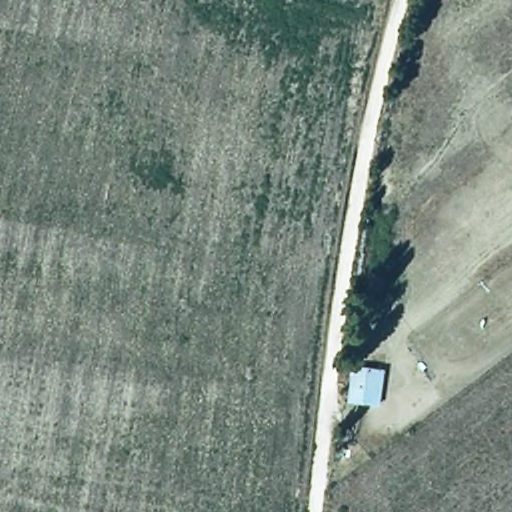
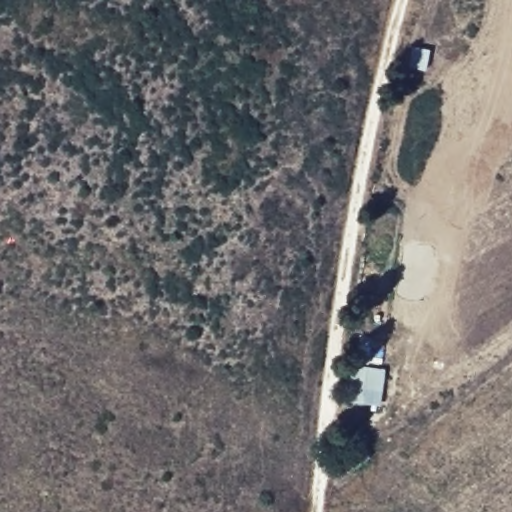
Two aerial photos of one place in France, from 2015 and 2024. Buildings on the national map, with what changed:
unchanged [(351,365),(385,369),(381,406),(347,403),(351,365)]

